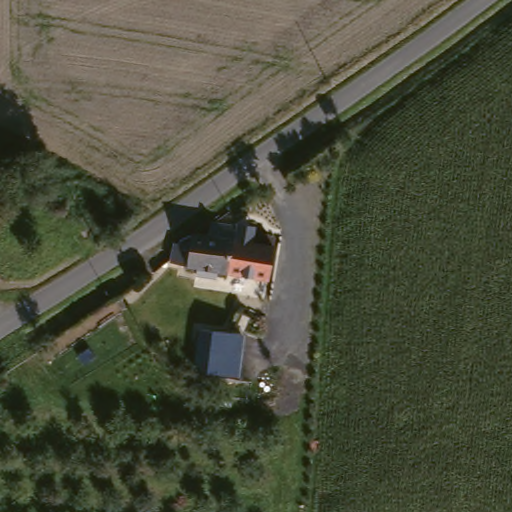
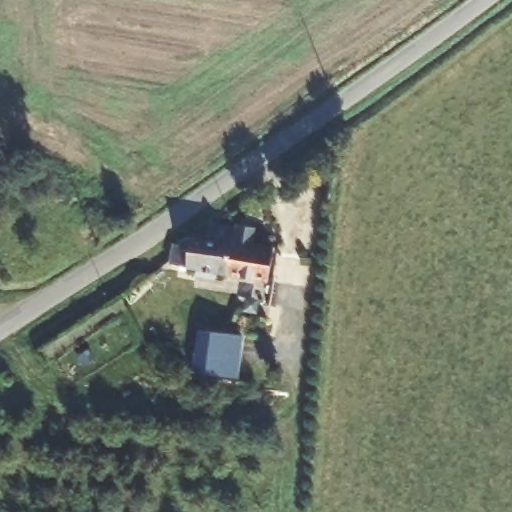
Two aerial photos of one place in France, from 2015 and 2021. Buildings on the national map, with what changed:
unchanged [(180,238),(199,243),(202,227),(215,230),(218,217),(243,223),(264,229),(261,241),(280,245),(274,277),(177,255),(180,238)]
unchanged [(195,366),(200,326),(236,332),(232,371),(195,366)]

